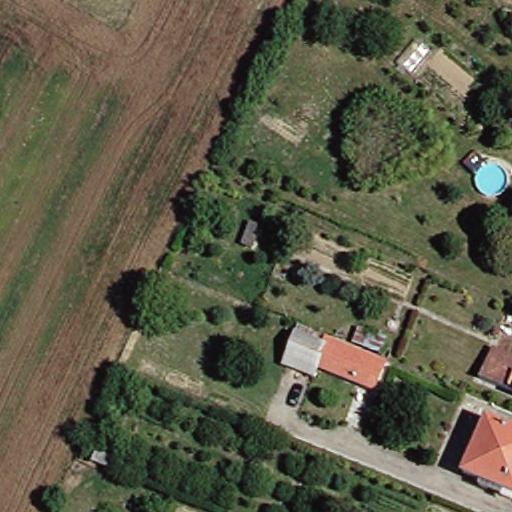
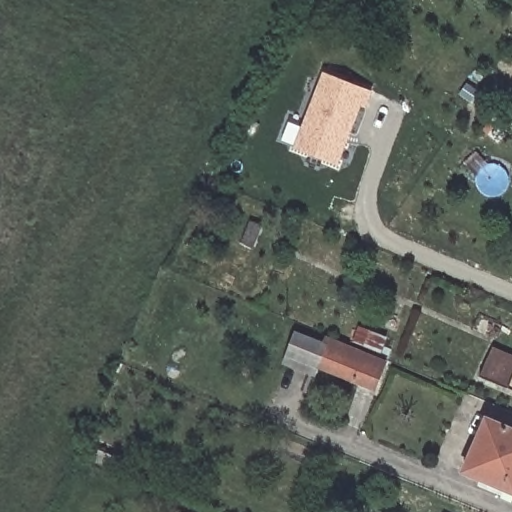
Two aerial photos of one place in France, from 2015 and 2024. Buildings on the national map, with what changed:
new [(324,71),(374,91),(368,108),(362,105),(339,165),(294,147),(324,71)]
unchanged [(319,365),(314,375),(282,362),(294,333),(323,346),(327,337),(385,361),(374,388),(319,365)]
unchanged [(476,374),(484,352),(486,349),(512,360),(512,389),(476,374)]
unchanged [(459,471),(482,418),(512,431),(512,494),(459,471)]

